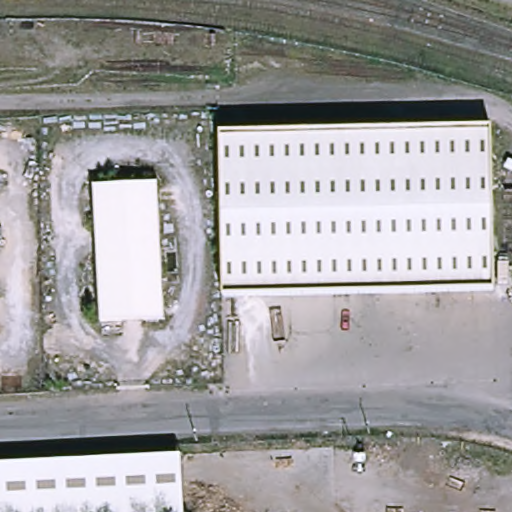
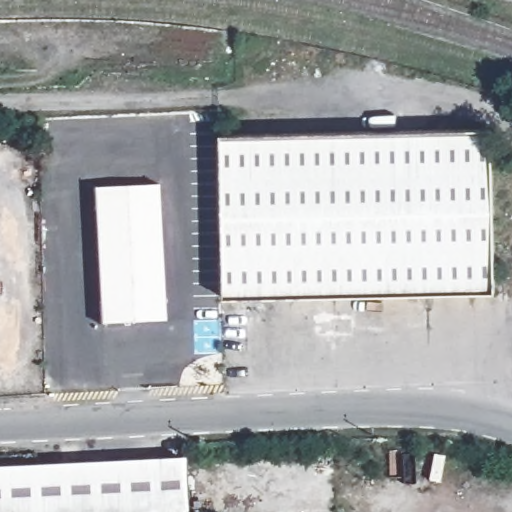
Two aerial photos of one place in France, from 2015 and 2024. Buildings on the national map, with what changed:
unchanged [(490,287),(223,295),(220,133),(485,128),(490,287)]
unchanged [(164,315),(99,318),(94,185),(158,183),(164,315)]
unchanged [(179,512),(0,512),(0,465),(177,458),(179,512)]

